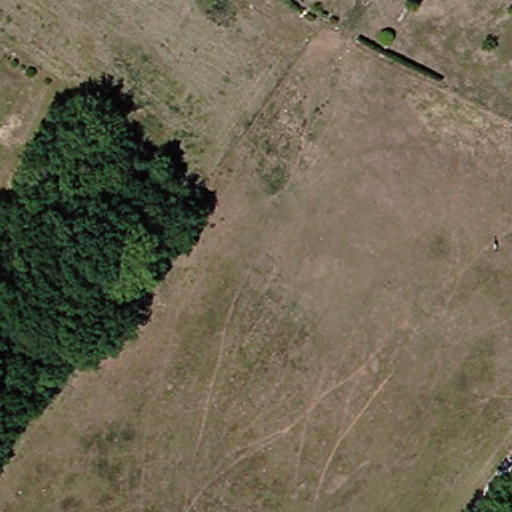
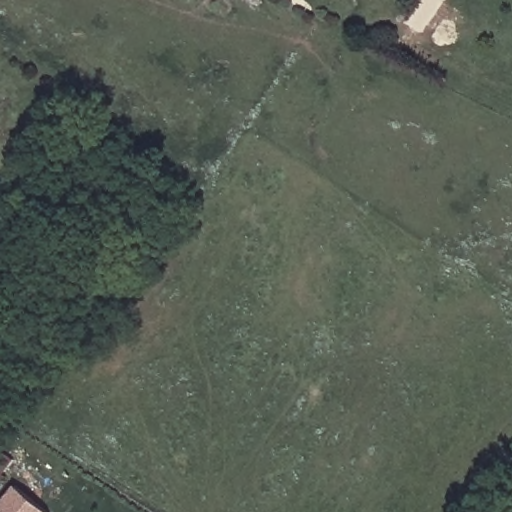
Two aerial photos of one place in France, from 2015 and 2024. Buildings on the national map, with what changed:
new [(45,512),(0,512),(0,500),(10,486),(45,512)]

